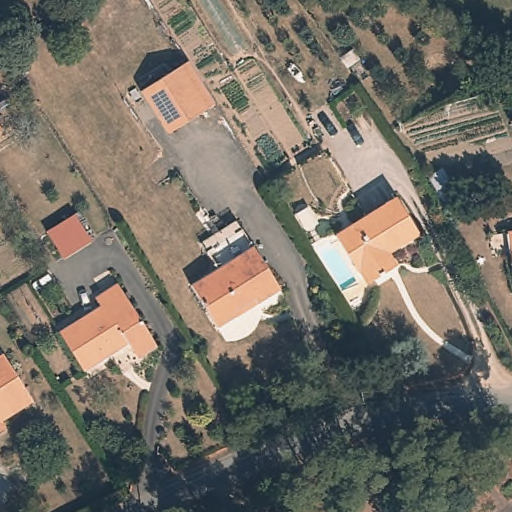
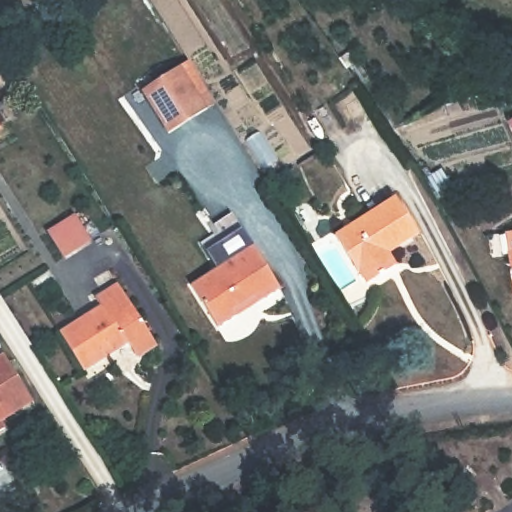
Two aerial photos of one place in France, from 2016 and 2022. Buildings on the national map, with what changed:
unchanged [(351,51),(356,59),(345,66),(340,59),(351,51)]
unchanged [(141,92),(180,67),(188,62),(215,105),(206,110),(169,134),(141,92)]
unchanged [(0,128),(0,108),(9,122),(0,128)]
unchanged [(395,198),(417,235),(387,254),(395,266),(366,284),(358,272),(357,272),(335,236),(395,198)]
unchanged [(280,285),(256,300),(254,295),(234,307),(236,312),(218,323),(190,281),(216,264),(200,239),(235,216),(280,285)]
unchanged [(512,228),(512,264),(506,229),(512,228)]
unchanged [(137,307),(156,336),(136,348),(127,333),(82,361),(59,323),(100,297),(95,288),(117,275),(133,300),(137,307)]
unchanged [(0,354),(3,352),(29,392),(0,411),(0,354)]
unchanged [(0,426),(0,414),(5,422),(0,426)]

